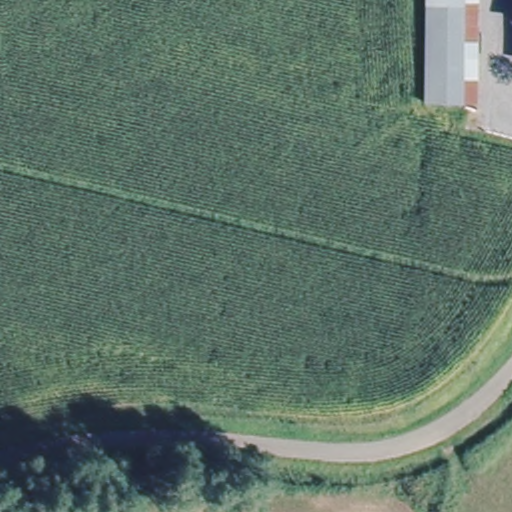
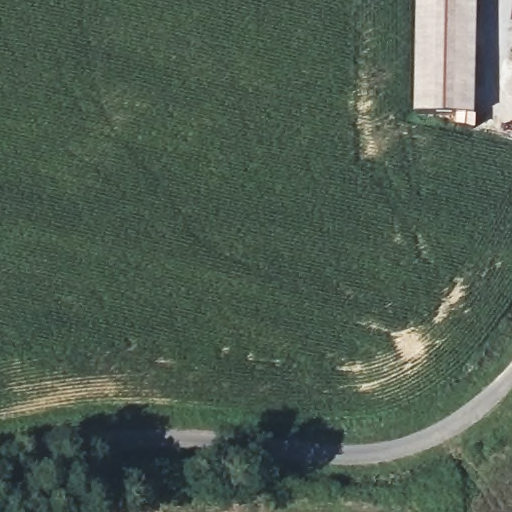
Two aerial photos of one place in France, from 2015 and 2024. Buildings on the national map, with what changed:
unchanged [(422,98),(422,0),(479,0),(479,102),(422,98)]

